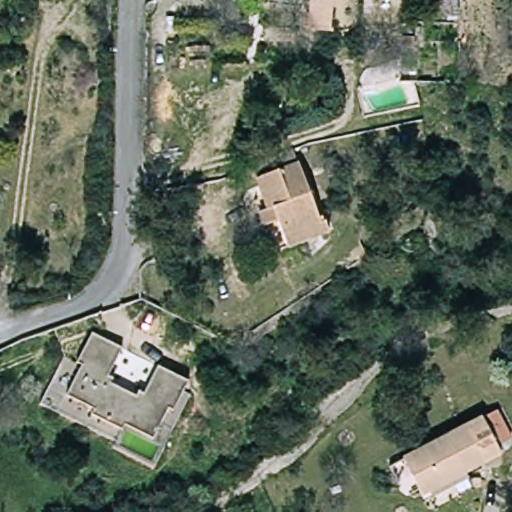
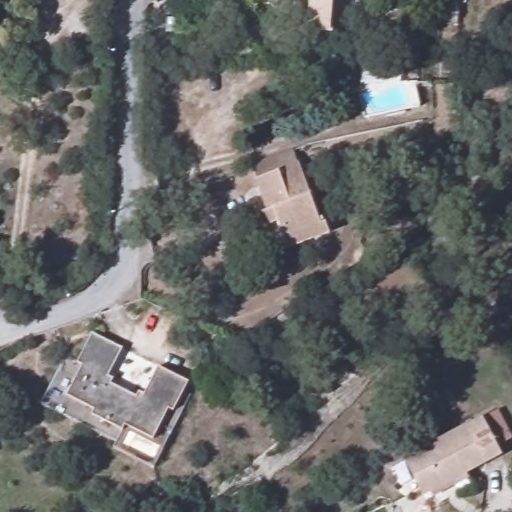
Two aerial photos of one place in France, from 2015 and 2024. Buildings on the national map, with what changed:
unchanged [(333,34),(333,37),(335,39),(307,37),(307,35),(309,35),(310,31),(312,0),(336,0),(333,34)]
unchanged [(273,249),(270,239),(258,207),(268,203),(257,173),(294,159),(313,210),(324,206),(329,217),(333,227),(273,249)]
unchanged [(59,359),(74,363),(89,335),(121,348),(106,385),(138,400),(155,369),(186,384),(172,414),(165,409),(151,440),(125,426),(114,445),(37,407),(59,359)]
unchanged [(429,496),(420,501),(400,462),(480,419),(500,458),(464,477),(429,496)]

